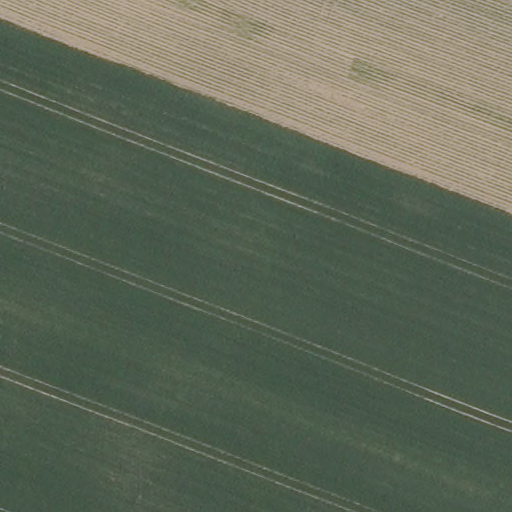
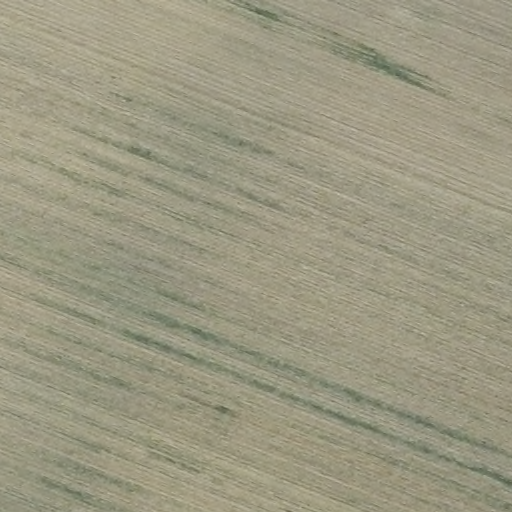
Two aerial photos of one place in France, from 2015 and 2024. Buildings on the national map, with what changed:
[]

